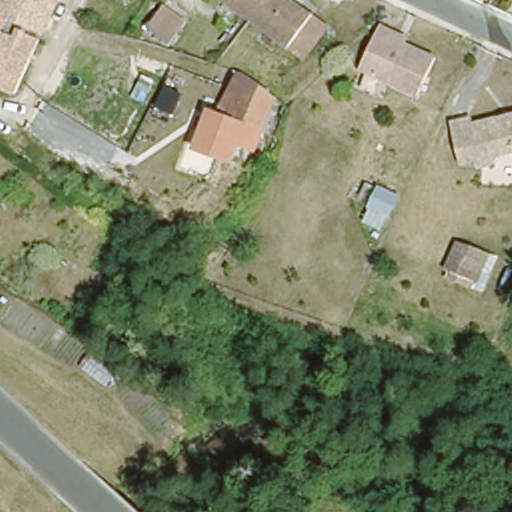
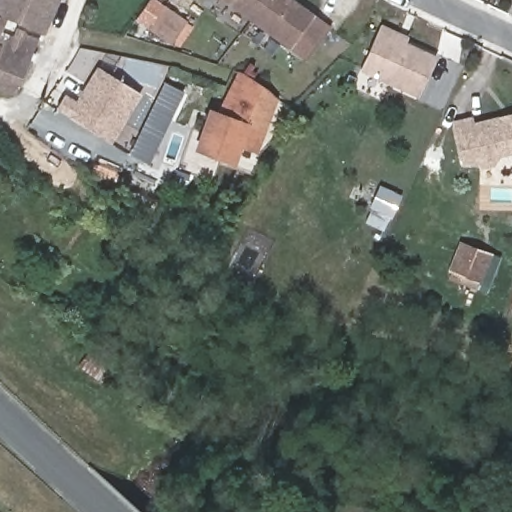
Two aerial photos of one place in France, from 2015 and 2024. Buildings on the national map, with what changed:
unchanged [(0,14),(0,2),(1,0),(55,0),(53,5),(40,32),(0,14)]
unchanged [(250,17),(227,0),(264,0),(250,17)]
unchanged [(303,57),(296,52),(250,17),(264,0),(292,0),(320,22),(327,27),(303,57)]
unchanged [(186,24),(170,45),(157,36),(148,30),(164,7),(172,12),(186,24)]
unchanged [(5,21),(4,23),(0,32),(13,40),(17,30),(20,31),(24,33),(37,39),(29,57),(28,57),(15,87),(13,90),(0,85),(0,18),(5,21)]
unchanged [(398,47),(430,61),(413,97),(355,70),(372,35),(398,47)]
new [(71,92),(82,101),(105,67),(145,96),(112,143),(61,106),(71,92)]
unchanged [(258,154),(242,147),(235,167),(193,150),(209,108),(219,111),(238,69),(280,101),(258,154)]
unchanged [(184,92),(173,117),(157,108),(169,84),(184,92)]
unchanged [(471,161),(455,165),(446,126),(463,122),(464,127),(492,121),(512,116),(512,158),(486,165),(473,167),(471,161)]
new [(382,188),(402,197),(394,216),(388,212),(382,226),(368,219),(382,188)]
unchanged [(477,287),(442,275),(454,242),(492,252),(477,287)]
unchanged [(91,350),(118,370),(110,386),(82,366),(91,350)]
unchanged [(123,370),(129,376),(123,382),(117,377),(123,370)]
unchanged [(35,379),(53,393),(50,397),(43,392),(42,393),(30,385),(35,379)]

